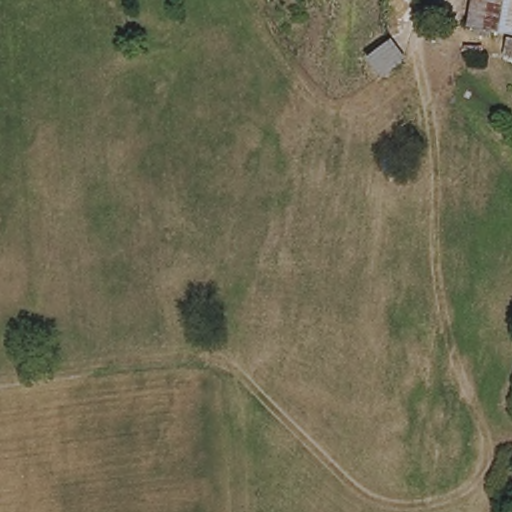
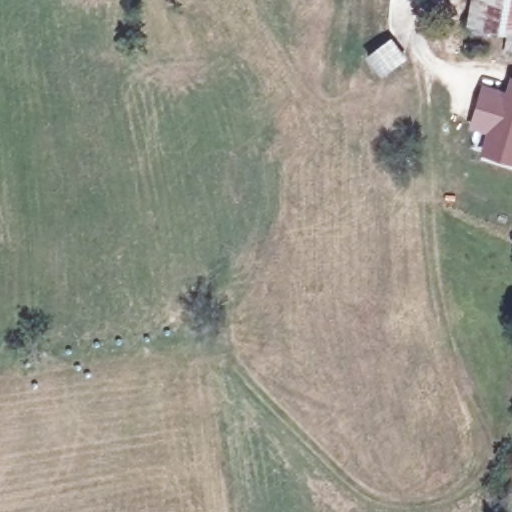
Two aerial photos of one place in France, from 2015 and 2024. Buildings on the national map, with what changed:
unchanged [(462,42),(470,0),(512,0),(512,47),(462,42)]
unchanged [(364,62),(385,34),(404,49),(383,77),(364,62)]
new [(482,82),(504,89),(508,75),(512,76),(512,165),(479,156),(485,133),(468,129),(482,82)]

